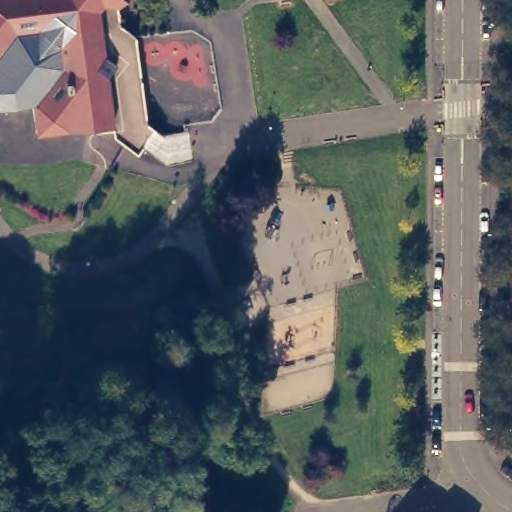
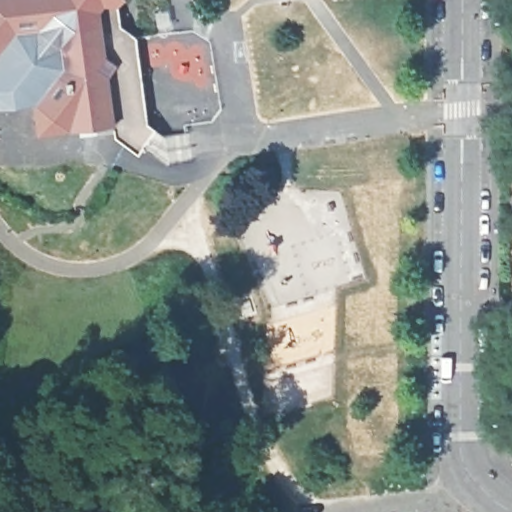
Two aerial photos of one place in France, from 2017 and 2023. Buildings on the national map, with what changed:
unchanged [(99,5),(105,51),(117,60),(108,71),(114,120),(37,130),(33,99),(0,103),(0,0),(103,0),(99,5)]
unchanged [(120,20),(135,32),(147,119),(164,131),(189,128),(192,158),(167,161),(143,143),(138,150),(115,133),(114,120),(108,71),(117,60),(105,51),(99,5),(103,0),(117,0),(120,20)]

